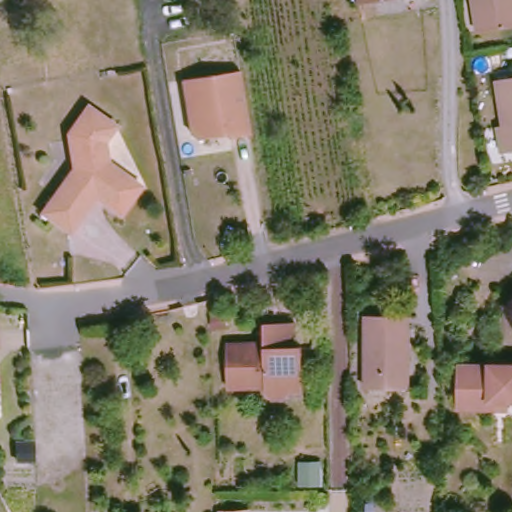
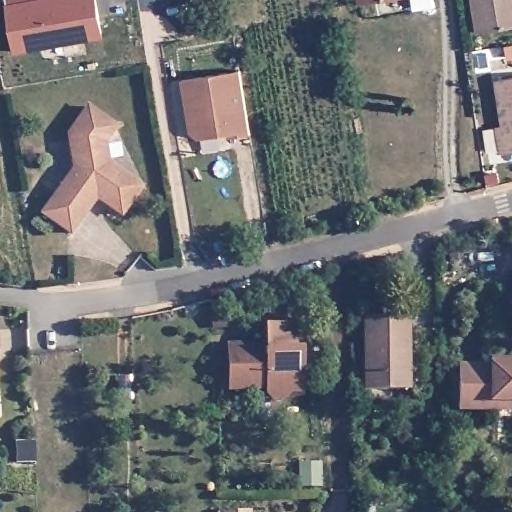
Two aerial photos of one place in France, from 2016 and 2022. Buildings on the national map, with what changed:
new [(8,5),(7,0),(96,0),(104,39),(14,55),(6,5),(8,5)]
unchanged [(362,4),(362,0),(388,0),(362,4)]
unchanged [(472,0),(512,0),(512,30),(478,35),(472,0)]
unchanged [(250,132),(249,132),(229,135),(228,132),(197,136),(190,131),(182,78),(240,69),(250,132)]
unchanged [(499,132),(492,86),(512,83),(512,156),(503,158),(498,159),(494,133),(499,132)]
unchanged [(72,232),(45,212),(77,167),(69,134),(88,107),(117,127),(105,142),(110,161),(144,185),(123,214),(102,199),(96,200),(72,232)]
unchanged [(364,391),(364,318),(405,319),(405,391),(364,391)]
unchanged [(317,371),(307,379),(307,386),(292,386),(287,392),(265,392),(265,385),(226,385),(225,341),(263,341),(263,322),(302,322),(302,356),(317,371)]
unchanged [(509,360),(512,360),(512,400),(509,400),(509,406),(499,406),(499,362),(509,363),(509,360)]
unchanged [(495,406),(495,412),(460,412),(460,364),(492,365),(492,362),(499,362),(499,406),(495,406)]
unchanged [(36,442),(37,453),(37,461),(20,462),(19,442),(36,442)]
unchanged [(245,511),(245,512),(212,512),(212,511),(245,511)]

